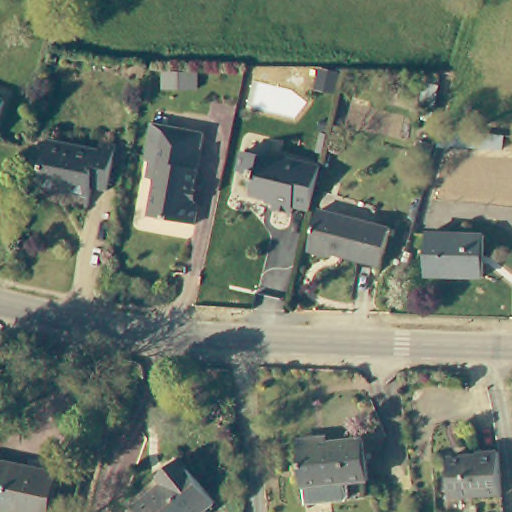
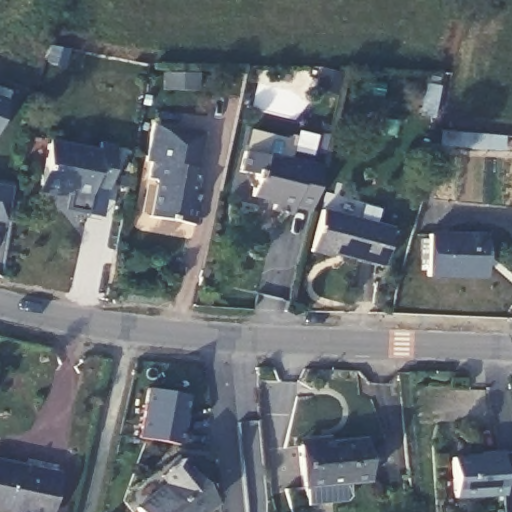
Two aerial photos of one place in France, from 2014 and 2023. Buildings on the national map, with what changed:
unchanged [(6,100),(0,119),(0,98),(6,100)]
unchanged [(201,131),(189,195),(194,207),(192,223),(147,216),(152,189),(146,175),(149,159),(143,158),(150,121),(201,131)]
unchanged [(95,180),(92,191),(43,181),(52,139),(102,150),(105,136),(120,139),(111,183),(95,180)]
unchanged [(313,207),(296,204),(295,210),(277,205),(278,199),(252,192),(257,171),(242,167),(247,147),(282,156),(284,150),(325,160),(313,207)]
new [(8,224),(0,223),(0,184),(13,186),(8,224)]
unchanged [(392,233),(383,268),(332,255),(331,260),(311,255),(322,215),(392,233)]
unchanged [(482,237),(482,278),(424,277),(427,235),(482,237)]
new [(190,395),(181,446),(138,438),(147,387),(190,395)]
unchanged [(363,432),(367,476),(347,478),(348,490),(344,497),(317,500),(314,495),(307,496),(301,439),(363,432)]
unchanged [(448,500),(446,458),(475,457),(474,451),(495,450),(497,497),(448,500)]
unchanged [(166,475),(179,463),(215,506),(207,512),(135,512),(135,511),(169,487),(173,483),(166,475)]
unchanged [(53,477),(45,512),(0,512),(0,465),(53,477)]

